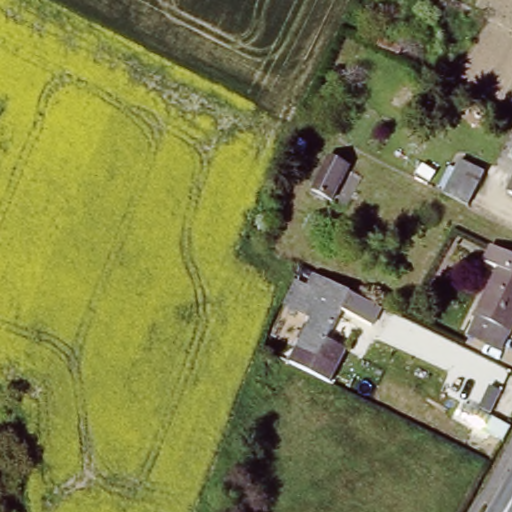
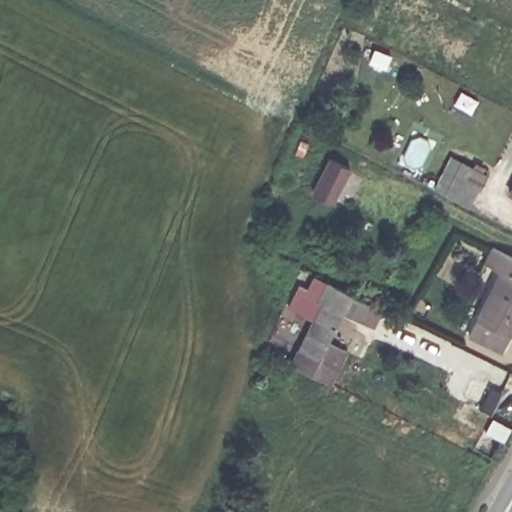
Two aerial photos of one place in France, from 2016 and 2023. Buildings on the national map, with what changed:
unchanged [(445,180),(460,151),(491,169),(476,196),(445,180)]
unchanged [(348,164),(330,199),(311,189),(330,154),(348,164)]
unchanged [(512,187),(512,195),(508,194),(512,187)]
unchanged [(470,332),(502,270),(485,260),(494,244),(512,253),(512,326),(500,348),(470,332)]
unchanged [(330,337),(350,347),(341,366),(296,345),(320,297),(313,293),(323,274),(352,290),(330,337)]

